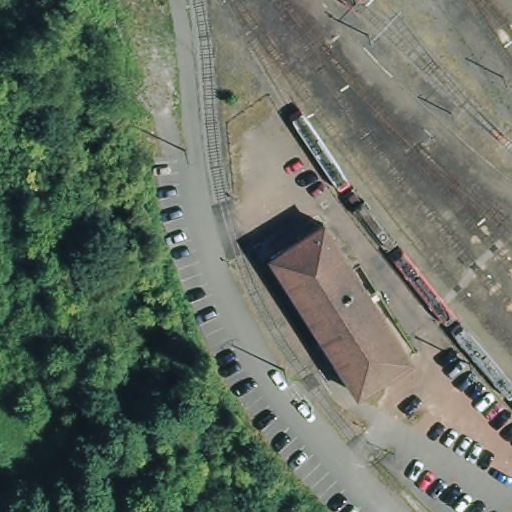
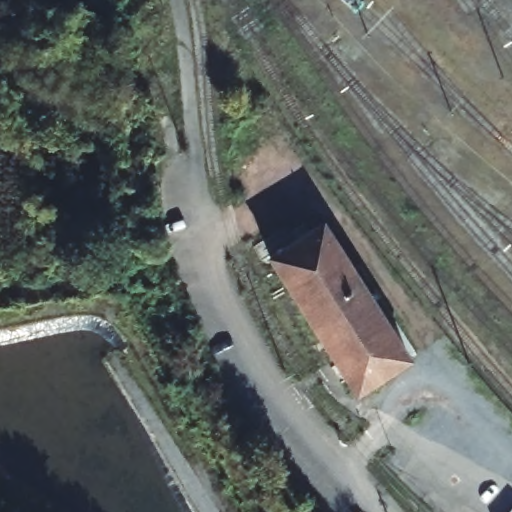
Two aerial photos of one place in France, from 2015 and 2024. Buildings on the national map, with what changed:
unchanged [(356,386),(270,251),(321,218),(408,352),(356,386)]

